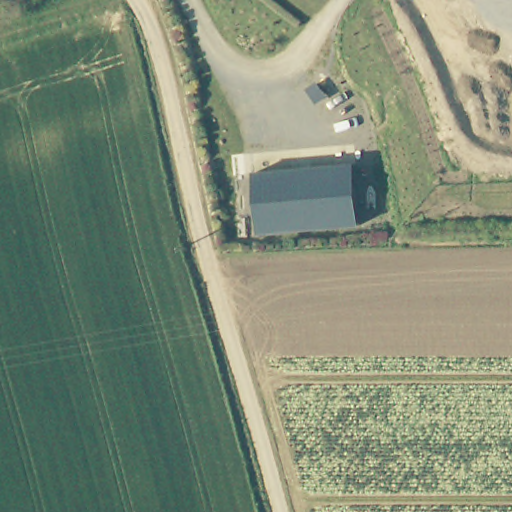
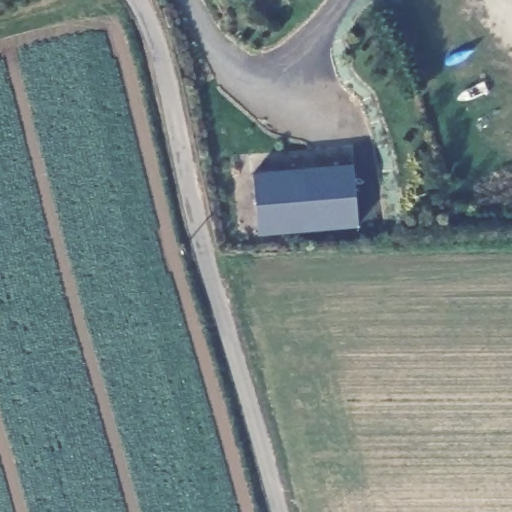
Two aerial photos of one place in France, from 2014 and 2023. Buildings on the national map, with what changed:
unchanged [(258,230),(255,170),(352,166),(354,224),(258,230)]

